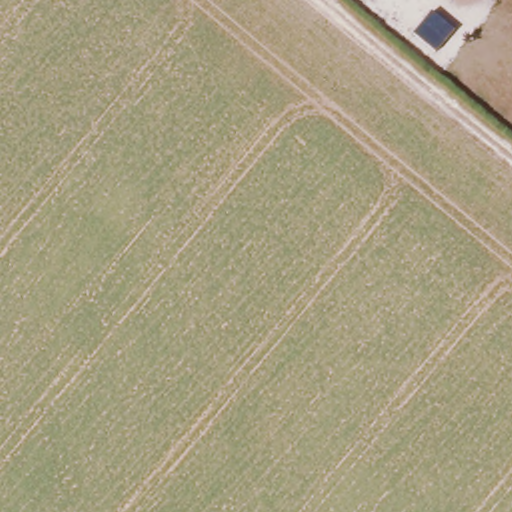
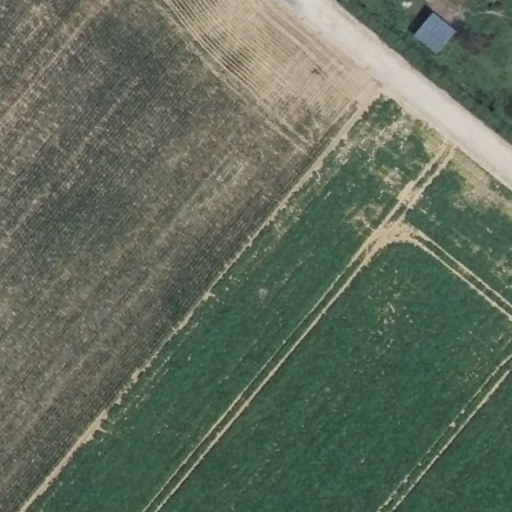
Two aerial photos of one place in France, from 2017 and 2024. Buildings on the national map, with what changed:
unchanged [(457,29),(437,51),(417,32),(432,8),(457,29)]

